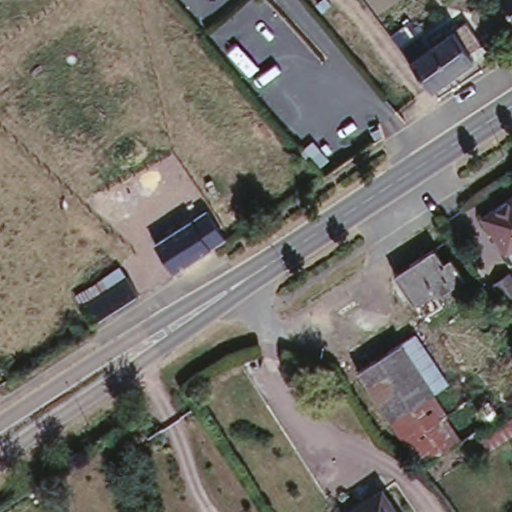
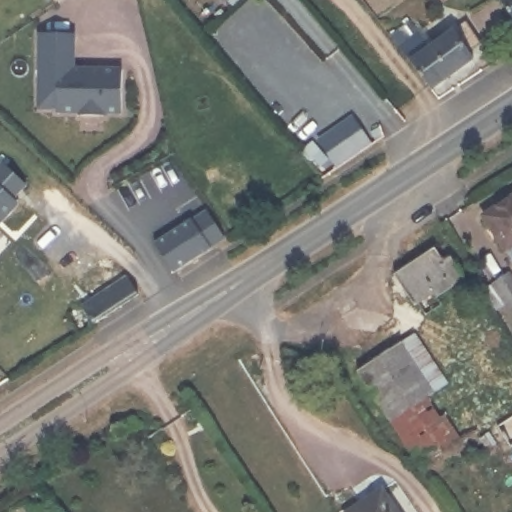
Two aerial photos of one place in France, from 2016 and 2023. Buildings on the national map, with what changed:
unchanged [(512,9),(506,0),(512,0),(512,9)]
unchanged [(430,41),(463,21),(482,44),(470,53),(475,58),(434,89),(401,44),(421,29),(430,41)]
new [(73,35),(73,70),(74,70),(86,70),(122,70),(121,113),(103,113),(103,117),(80,117),(80,113),(57,113),(57,109),(38,109),(39,35),(73,35)]
new [(5,162),(29,185),(16,199),(21,204),(0,227),(0,167),(5,162)]
unchanged [(512,242),(485,205),(512,188),(512,242)]
unchanged [(177,268),(155,240),(193,215),(214,244),(213,244),(177,268)]
unchanged [(429,314),(420,302),(397,268),(438,240),(446,254),(451,251),(464,272),(437,290),(446,302),(429,314)]
unchanged [(96,322),(85,304),(86,303),(78,294),(127,264),(132,273),(144,292),(96,322)]
unchanged [(512,301),(512,316),(502,321),(480,289),(497,278),(512,301)]
unchanged [(413,330),(447,380),(436,387),(453,413),(414,440),(410,434),(405,440),(354,368),(413,330)]
unchanged [(399,512),(344,512),(381,488),(399,512)]

